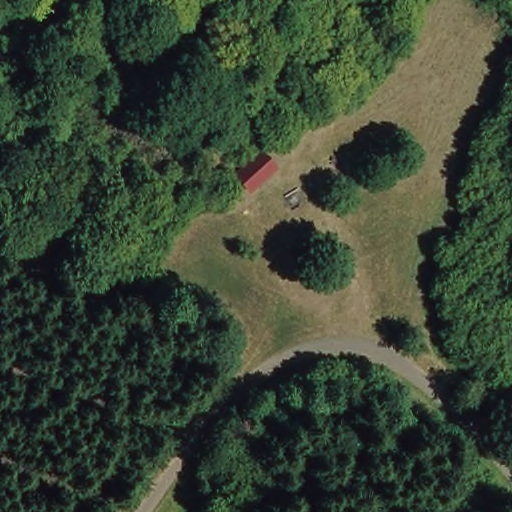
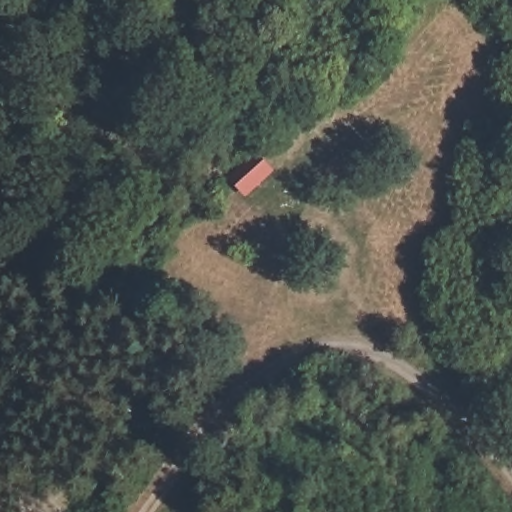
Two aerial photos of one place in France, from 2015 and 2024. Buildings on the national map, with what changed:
unchanged [(238,201),(218,182),(251,154),(271,173),(238,201)]

